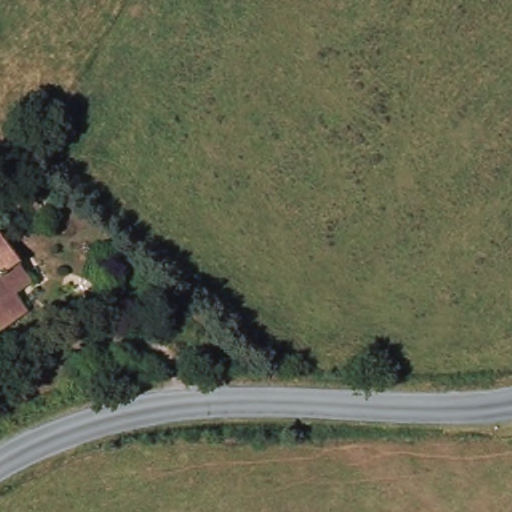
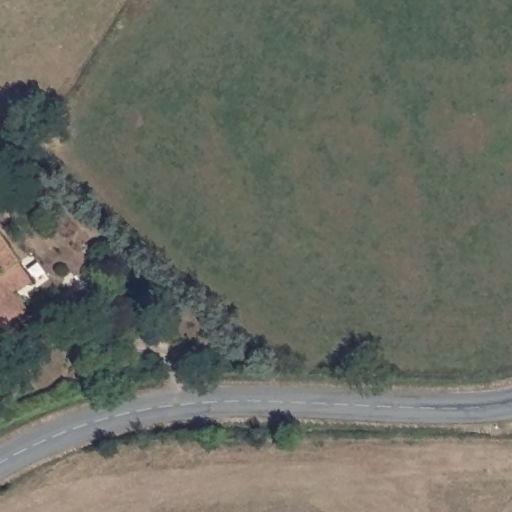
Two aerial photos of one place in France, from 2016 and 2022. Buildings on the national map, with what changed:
unchanged [(31,282),(14,293),(27,312),(0,331),(0,236),(19,263),(31,282)]

